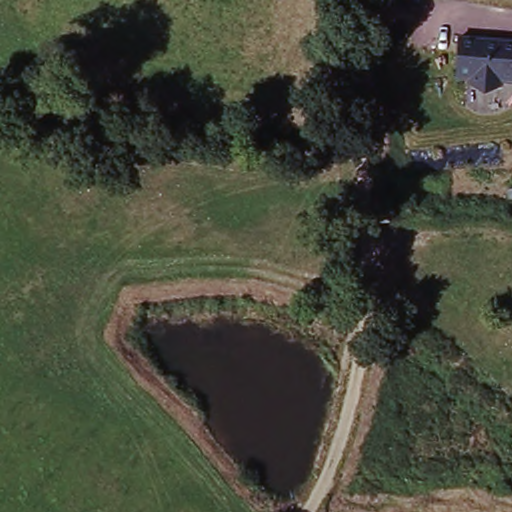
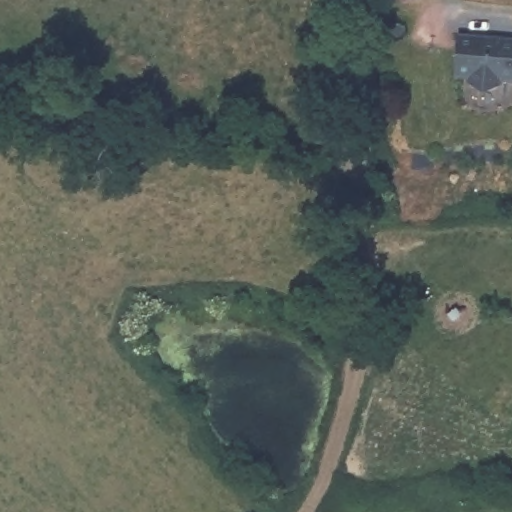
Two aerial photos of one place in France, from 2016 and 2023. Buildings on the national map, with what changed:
unchanged [(512,85),(496,84),(477,96),(468,82),(456,80),(460,37),(512,42),(512,85)]

